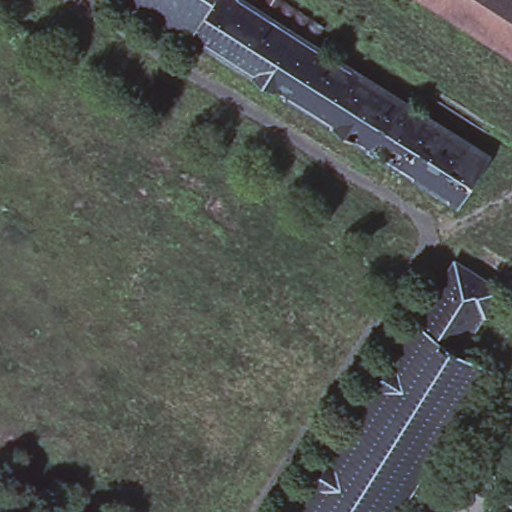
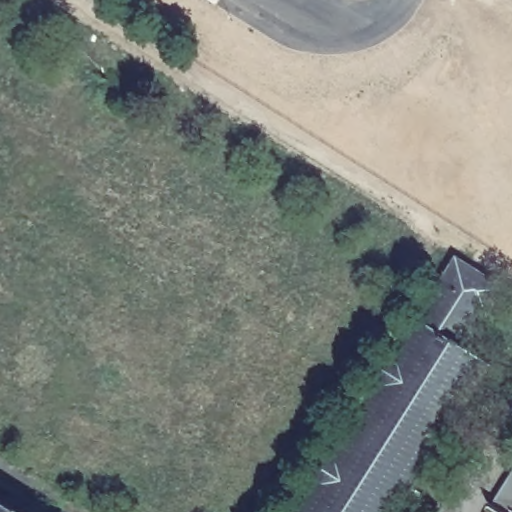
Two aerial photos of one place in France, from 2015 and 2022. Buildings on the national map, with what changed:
demolished [(462,207),(135,0),(244,0),(493,157),(462,207)]
new [(198,0),(220,0),(215,10),(198,0)]
demolished [(430,0),(512,0),(512,51),(430,0)]
unchanged [(434,334),(410,319),(449,259),(492,288),(477,313),(474,312),(452,346),(434,334)]
unchanged [(402,504),(396,500),(389,512),(287,512),(410,319),(434,334),(452,346),(482,364),(403,489),(409,493),(402,504)]
unchanged [(492,505),(512,474),(512,512),(503,512),(492,505)]
unchanged [(10,512),(0,512),(0,510),(2,507),(10,512)]

